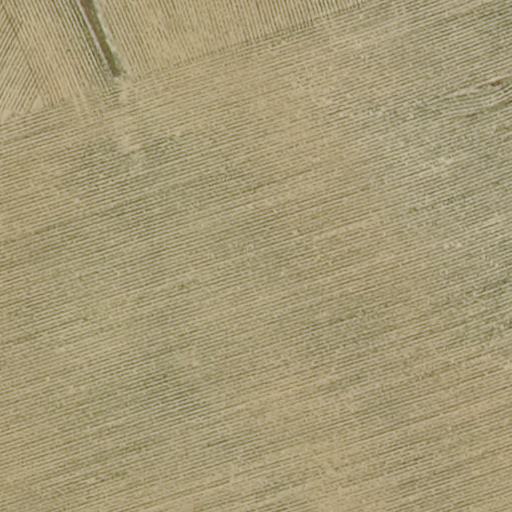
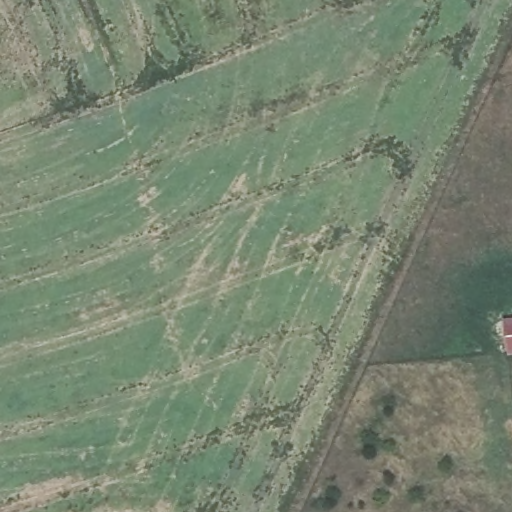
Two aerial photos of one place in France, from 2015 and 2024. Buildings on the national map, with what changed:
new [(512,321),(512,357),(505,358),(502,322),(512,321)]

